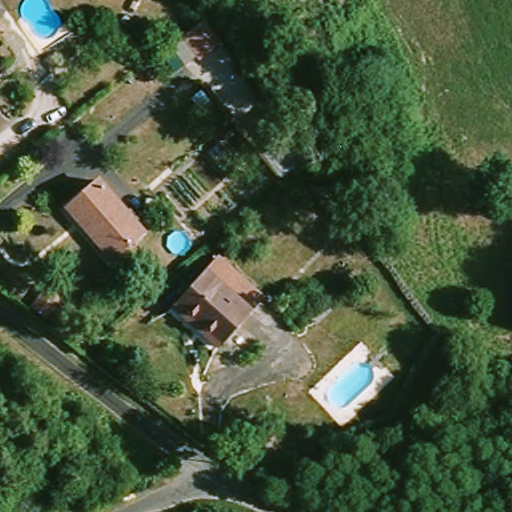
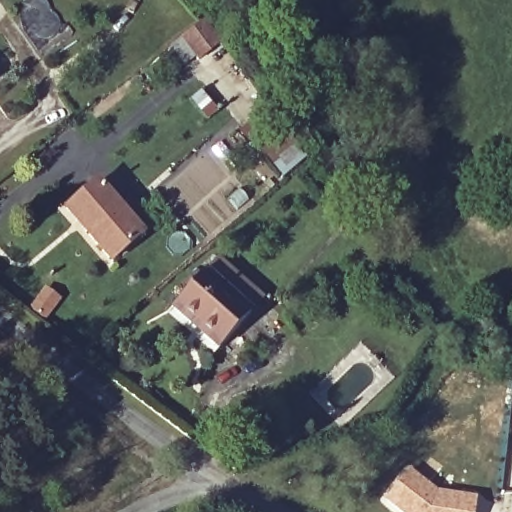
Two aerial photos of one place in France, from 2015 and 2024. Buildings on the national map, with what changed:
unchanged [(218,45),(197,62),(180,41),(202,24),(218,45)]
unchanged [(0,82),(0,77),(2,80),(0,82)]
unchanged [(155,234),(122,259),(100,231),(79,206),(87,200),(111,181),(155,234)]
unchanged [(190,306),(221,271),(232,260),(275,299),(265,312),(233,346),(190,306)]
new [(407,471),(437,492),(474,497),(472,512),(398,512),(384,501),(407,471)]

